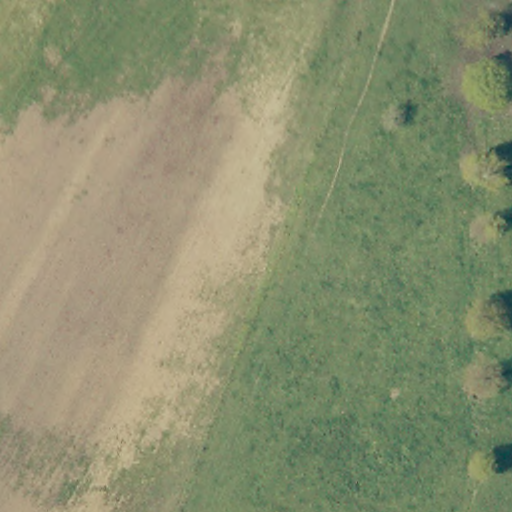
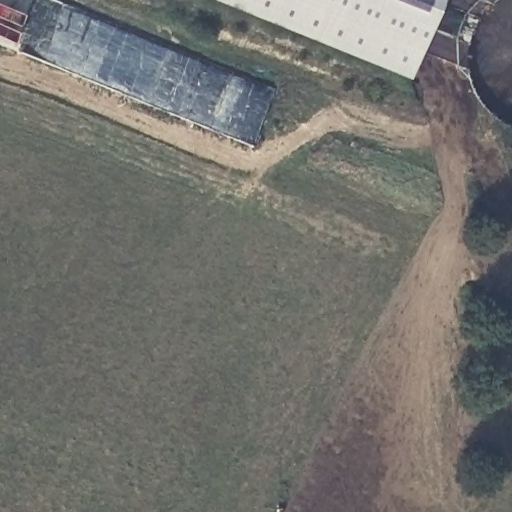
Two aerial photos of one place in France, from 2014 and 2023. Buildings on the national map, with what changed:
new [(406,79),(211,0),(438,0),(406,79)]

